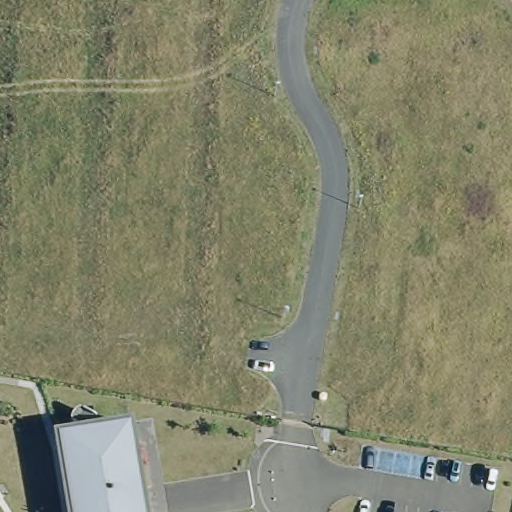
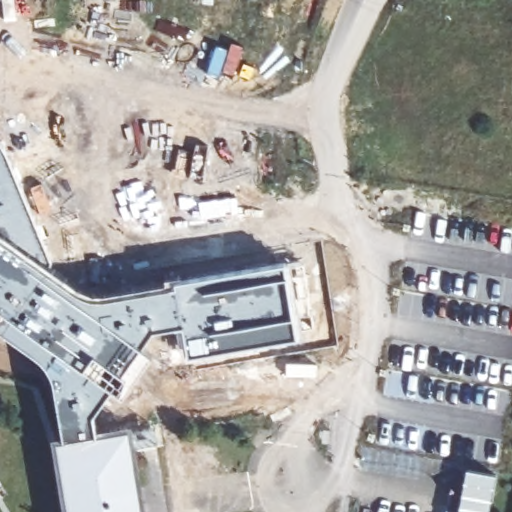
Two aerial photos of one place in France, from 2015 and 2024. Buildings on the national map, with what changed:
new [(49,369),(40,359),(0,329),(0,145),(4,149),(55,274),(86,295),(98,296),(111,295),(175,285),(175,278),(285,261),(297,334),(188,353),(182,323),(151,327),(141,344),(153,354),(124,396),(111,387),(92,414),(96,434),(63,439),(53,378),(49,369)]
unchanged [(66,512),(54,441),(126,429),(140,512),(66,512)]

